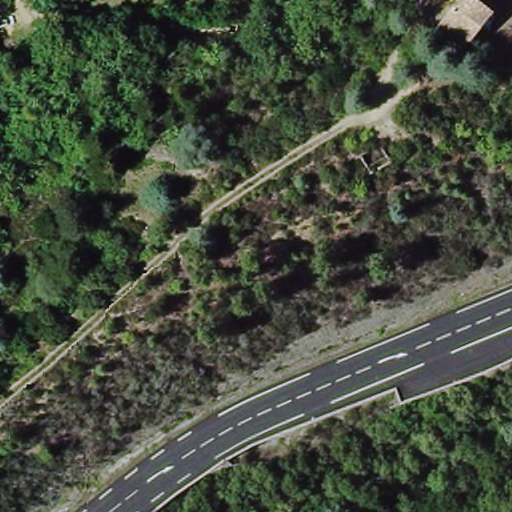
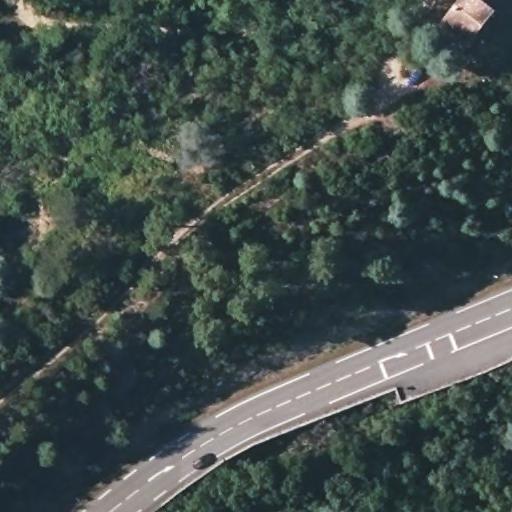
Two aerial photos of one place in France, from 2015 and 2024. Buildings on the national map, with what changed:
unchanged [(465,55),(440,32),(466,0),(475,0),(495,16),(465,55)]

